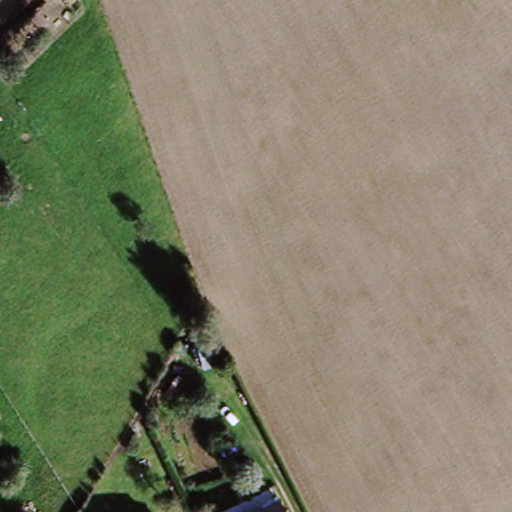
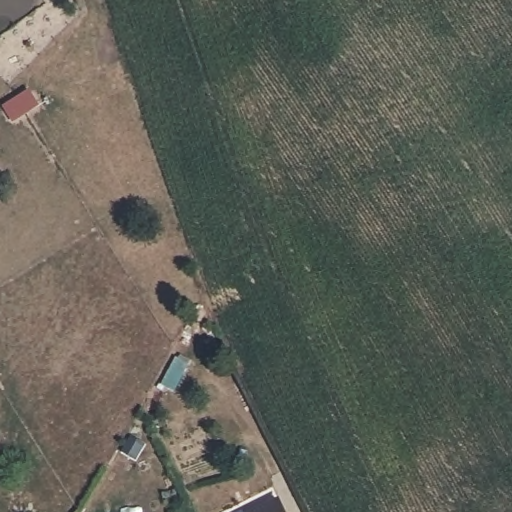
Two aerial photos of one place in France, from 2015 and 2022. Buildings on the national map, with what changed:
unchanged [(285,504),(288,512),(267,512),(285,504)]

